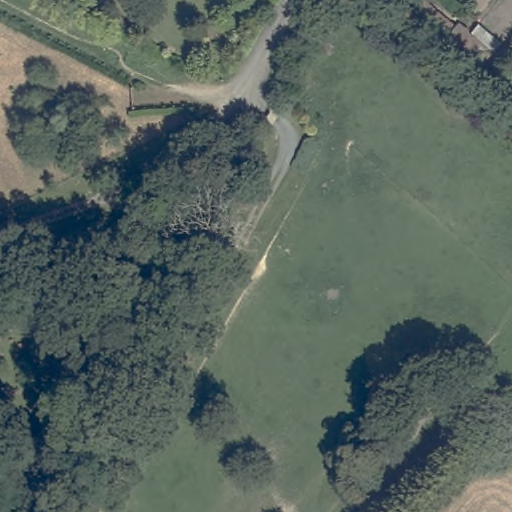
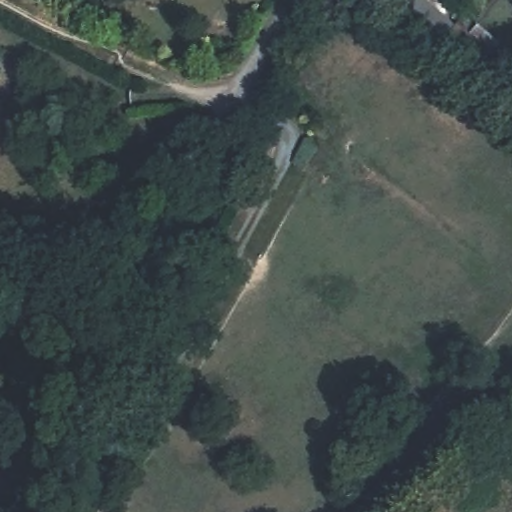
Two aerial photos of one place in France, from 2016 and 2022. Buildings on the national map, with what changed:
unchanged [(423,0),(431,6),(458,25),(450,36),(408,6),(401,0),(414,0),(418,4),(421,0),(423,0)]

